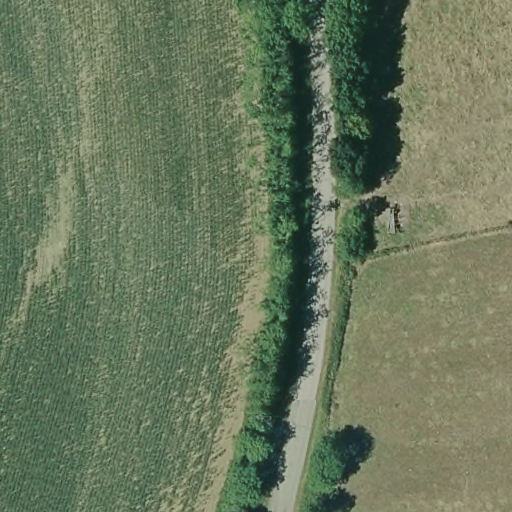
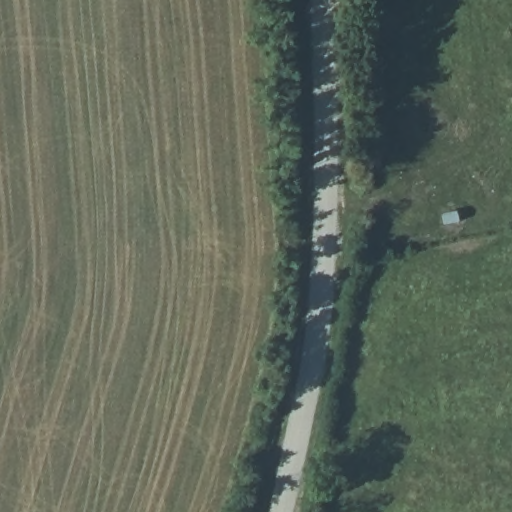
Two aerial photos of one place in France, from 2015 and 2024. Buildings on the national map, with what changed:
[]

